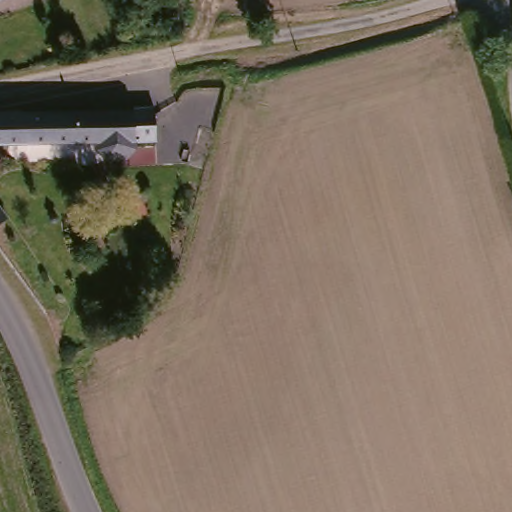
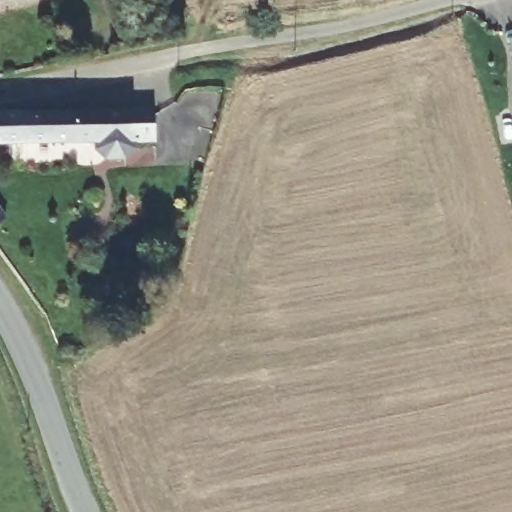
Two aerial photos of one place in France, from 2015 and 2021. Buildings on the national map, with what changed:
unchanged [(122,156),(103,159),(93,153),(92,138),(76,140),(0,147),(0,114),(80,106),(125,102),(147,100),(148,106),(150,133),(128,135),(128,148),(122,156)]
unchanged [(0,220),(0,215),(2,218),(0,220)]

